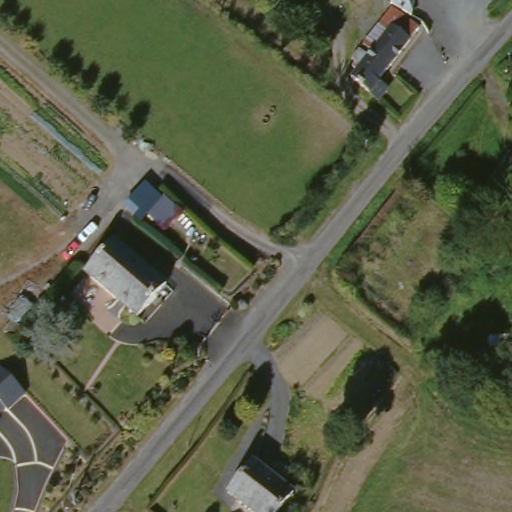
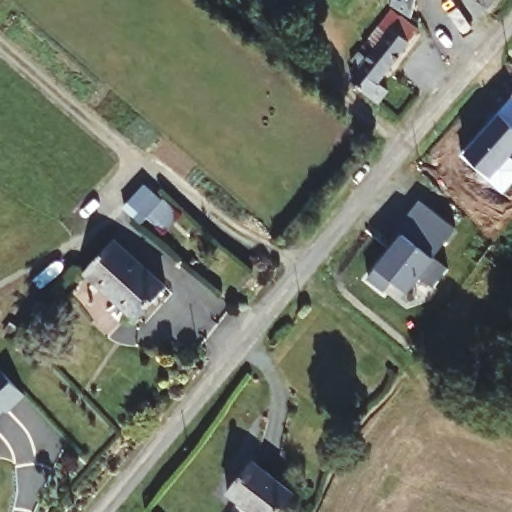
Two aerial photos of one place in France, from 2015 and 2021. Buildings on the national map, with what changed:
unchanged [(239,0),(279,0),(284,3),(269,22),(239,0)]
unchanged [(348,80),(344,77),(394,7),(416,22),(379,72),(388,79),(373,101),(348,80)]
new [(474,140),(476,142),(500,114),(502,116),(512,104),(512,152),(508,155),(512,159),(512,180),(503,191),(487,178),(489,176),(476,163),(474,166),(461,155),(474,140)]
new [(146,184),(163,200),(165,198),(178,210),(180,212),(162,231),(159,228),(149,218),(142,224),(135,217),(140,212),(129,201),(146,184)]
new [(388,239),(420,200),(456,229),(435,259),(448,268),(432,286),(421,275),(409,291),(394,279),(384,290),(368,278),(377,266),(393,244),(388,239)]
unchanged [(113,243),(163,288),(134,319),(85,274),(113,243)]
unchanged [(0,413),(0,371),(19,395),(0,413)]
unchanged [(293,502),(283,512),(250,512),(231,494),(257,468),(293,502)]

